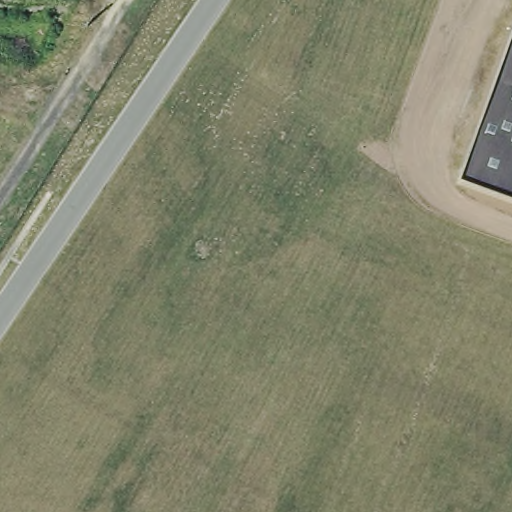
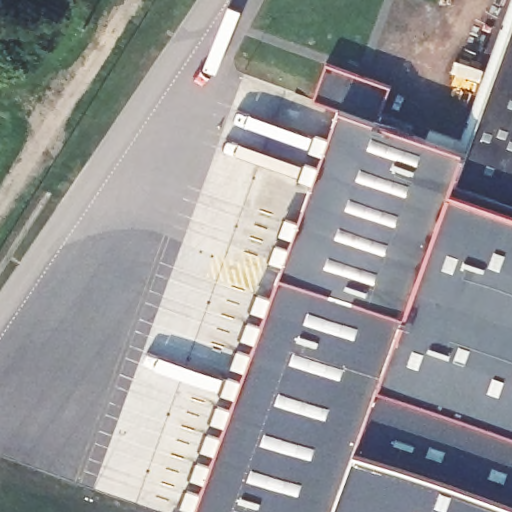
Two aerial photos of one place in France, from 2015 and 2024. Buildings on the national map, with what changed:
unchanged [(455,177),(512,21),(512,197),(455,177)]
new [(377,390),(402,321),(277,279),(340,108),(315,99),(328,63),(392,87),(378,122),(465,152),(455,177),(512,197),(512,438),(377,390)]
new [(377,390),(353,454),(332,512),(194,512),(277,279),(402,321),(392,346),(377,390)]
new [(353,454),(377,390),(512,438),(512,511),(353,454)]
new [(512,511),(512,512),(332,512),(353,454),(512,511)]

